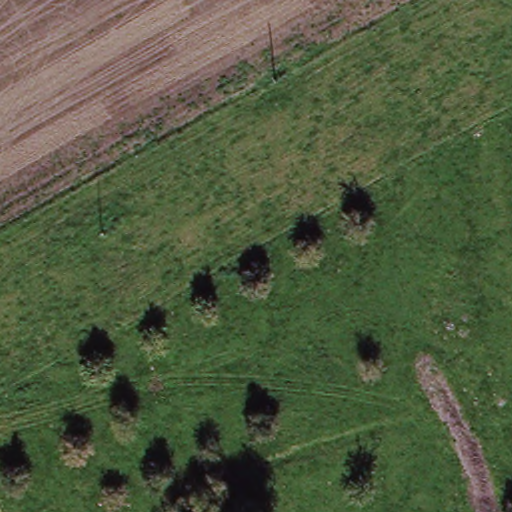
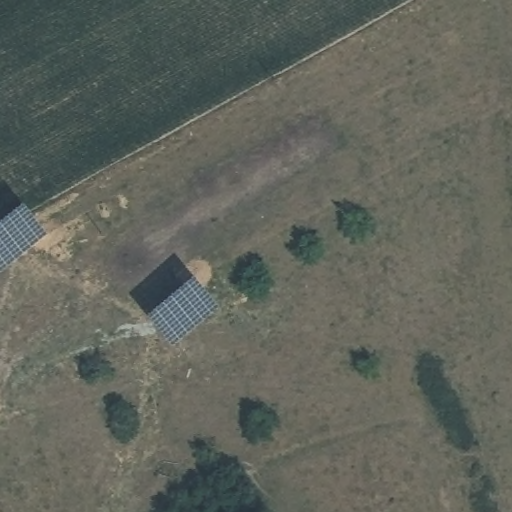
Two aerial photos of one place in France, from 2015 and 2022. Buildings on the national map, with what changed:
new [(25,208),(46,230),(0,268),(0,225),(25,208)]
new [(195,281),(215,308),(172,338),(152,312),(195,281)]

